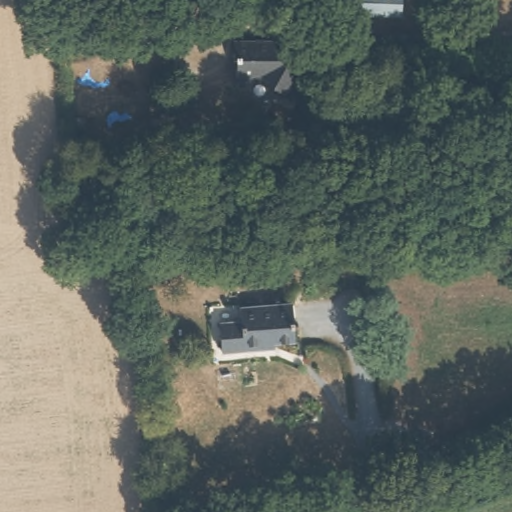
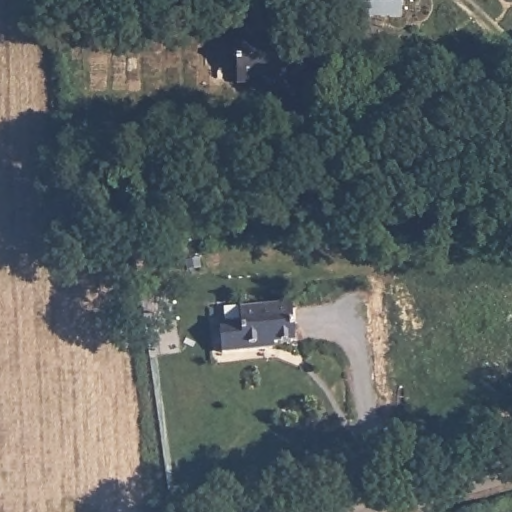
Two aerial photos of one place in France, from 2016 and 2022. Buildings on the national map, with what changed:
unchanged [(346,0),(400,0),(400,10),(400,14),(346,12),(346,11),(346,0)]
unchanged [(260,76),(253,76),(250,81),(238,80),(237,58),(231,56),(232,39),(274,38),(275,46),(280,50),(307,66),(299,79),(287,97),(260,76)]
unchanged [(482,65),(482,80),(444,81),(444,66),(482,65)]
unchanged [(295,349),(263,350),(262,356),(222,359),(218,328),(242,327),(240,313),(292,309),(295,349)]

